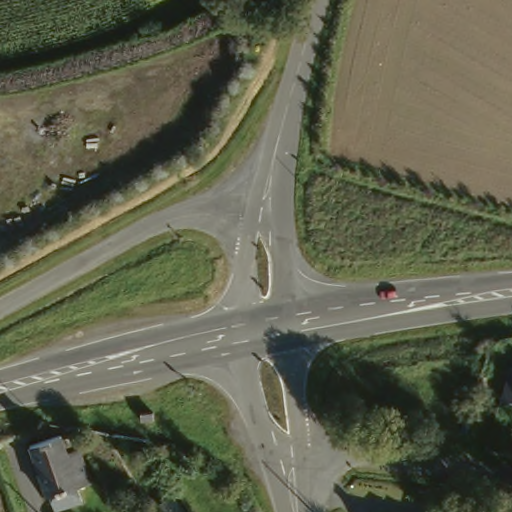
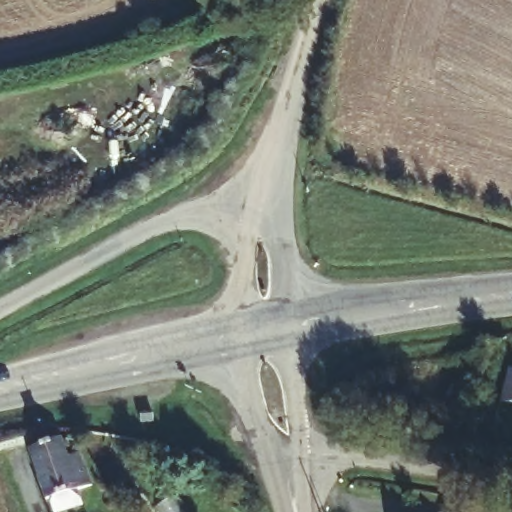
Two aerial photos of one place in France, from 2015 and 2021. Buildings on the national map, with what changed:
unchanged [(512,379),(512,391),(508,389),(512,379)]
unchanged [(62,435),(71,451),(83,446),(99,475),(87,481),(96,495),(73,508),(66,493),(60,496),(35,449),(42,445),(62,435)]

